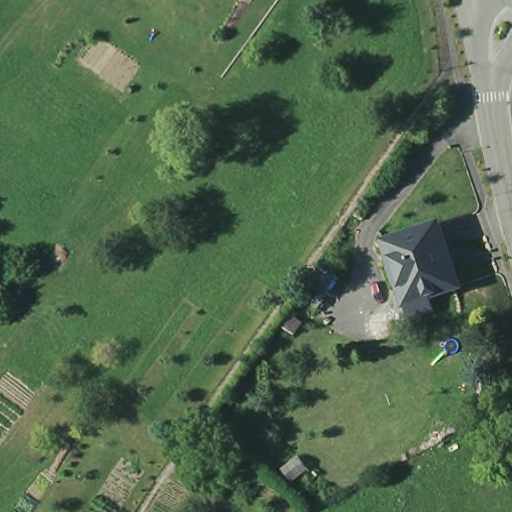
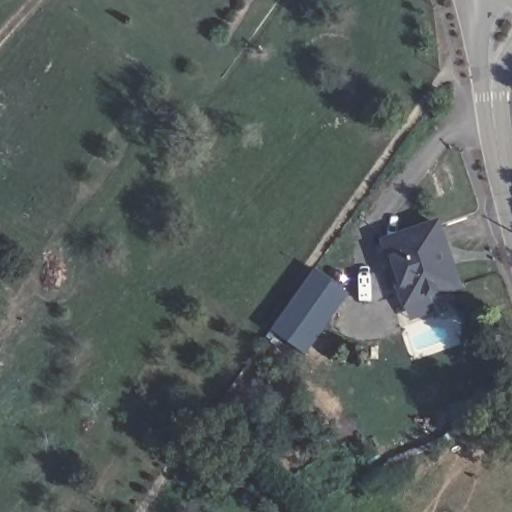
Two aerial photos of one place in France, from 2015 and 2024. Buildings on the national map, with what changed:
unchanged [(447,226),(468,289),(412,306),(392,244),(447,226)]
new [(350,294),(304,357),(269,334),(315,269),(350,294)]
demolished [(319,269),(334,282),(319,300),(303,288),(319,269)]

